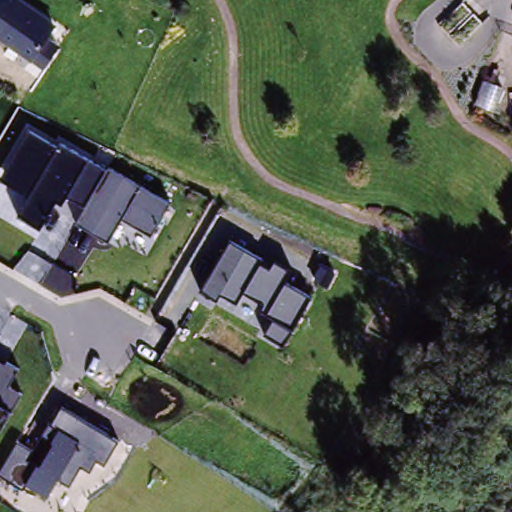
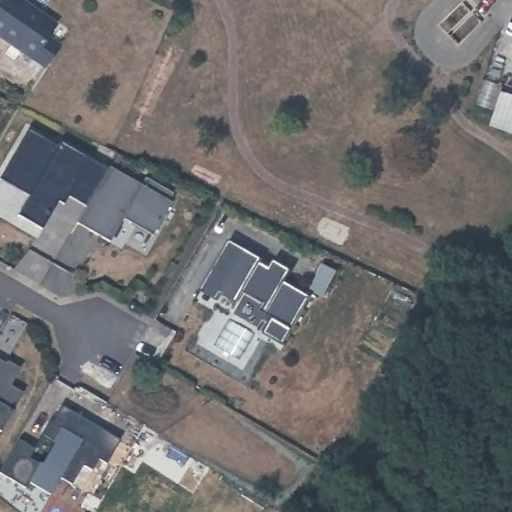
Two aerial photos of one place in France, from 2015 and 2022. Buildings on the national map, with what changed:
unchanged [(0,6),(5,0),(26,0),(59,22),(36,53),(0,30),(0,6)]
unchanged [(60,148),(61,144),(171,202),(153,234),(122,217),(111,240),(77,222),(86,207),(68,196),(63,203),(58,202),(41,229),(19,214),(31,193),(5,178),(30,132),(60,148)]
unchanged [(265,259),(263,263),(271,267),(275,261),(291,269),(286,283),(313,298),(286,344),(268,334),(277,316),(262,309),(266,303),(241,292),(236,303),(220,294),(217,300),(202,290),(230,241),(265,259)]
unchanged [(10,385),(23,391),(1,432),(0,431),(0,359),(19,370),(10,385)]
unchanged [(106,464),(99,460),(92,470),(82,466),(72,484),(60,478),(50,496),(27,484),(25,486),(0,471),(0,470),(19,440),(33,448),(26,457),(37,465),(54,436),(48,431),(62,405),(120,440),(106,464)]

